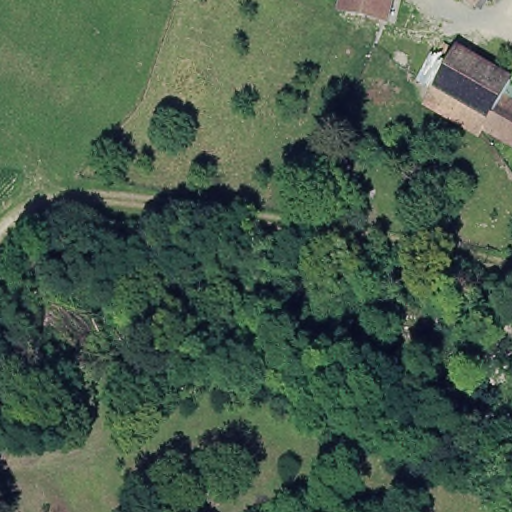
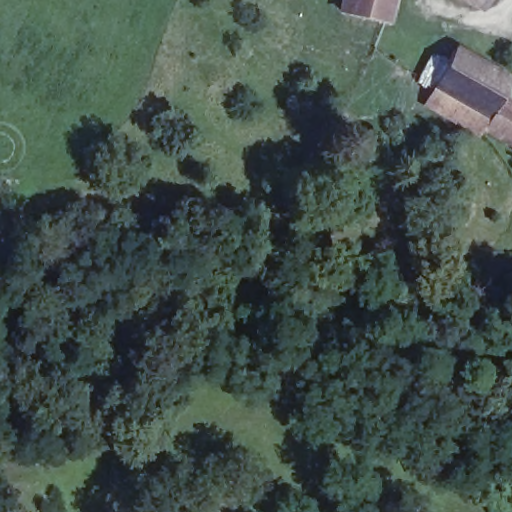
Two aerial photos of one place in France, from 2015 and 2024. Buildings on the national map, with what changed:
unchanged [(343,7),(345,0),(391,0),(387,16),(343,7)]
unchanged [(490,120),(455,100),(439,91),(446,74),(430,65),(440,49),(456,57),(466,41),(512,67),(512,128),(492,117),(490,120)]

